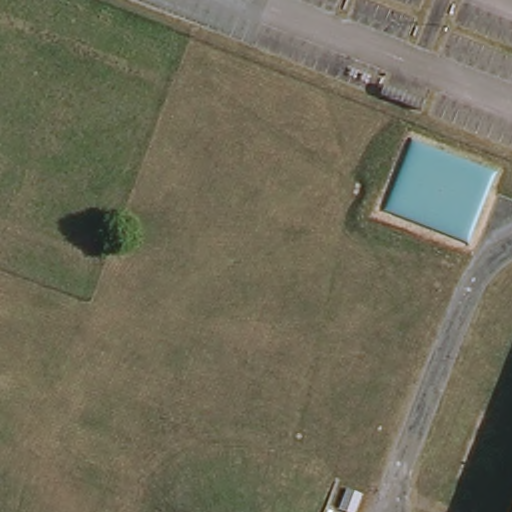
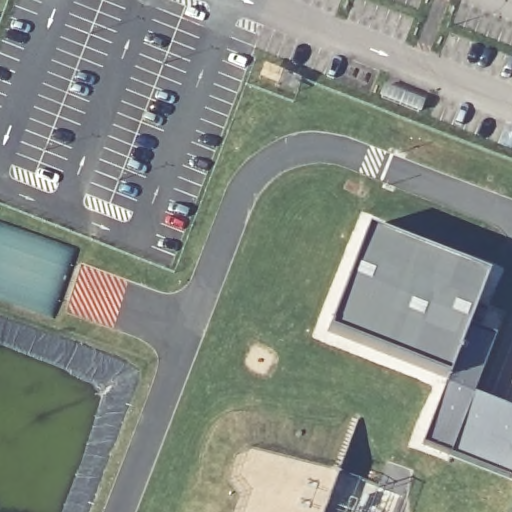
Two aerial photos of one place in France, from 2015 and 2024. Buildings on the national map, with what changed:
new [(73,254),(57,299),(50,297),(46,315),(0,299),(0,228),(73,254)]
new [(488,275),(470,324),(496,337),(473,394),(512,409),(512,450),(512,479),(424,446),(448,377),(331,331),(369,230),(488,275)]

